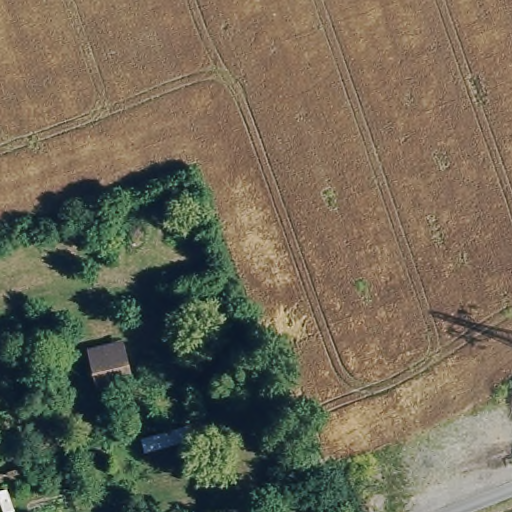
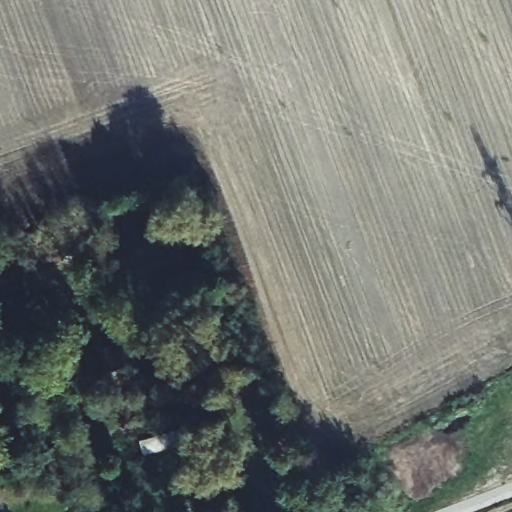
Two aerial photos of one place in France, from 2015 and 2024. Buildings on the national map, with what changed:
unchanged [(85,345),(122,338),(134,385),(96,392),(85,345)]

